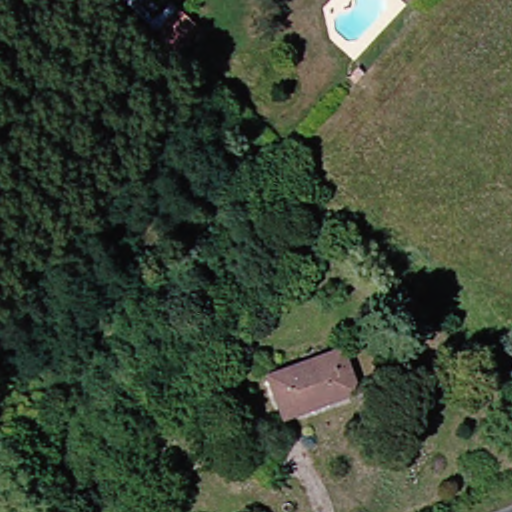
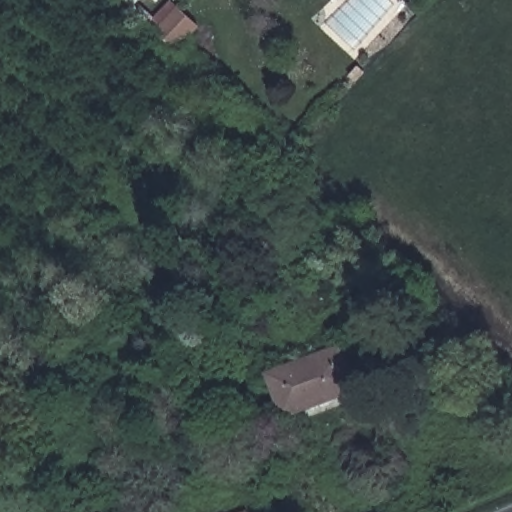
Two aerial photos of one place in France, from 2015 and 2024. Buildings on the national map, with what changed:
unchanged [(188,58),(164,35),(194,3),(218,26),(188,58)]
unchanged [(363,388),(286,417),(268,371),(345,343),(363,388)]

